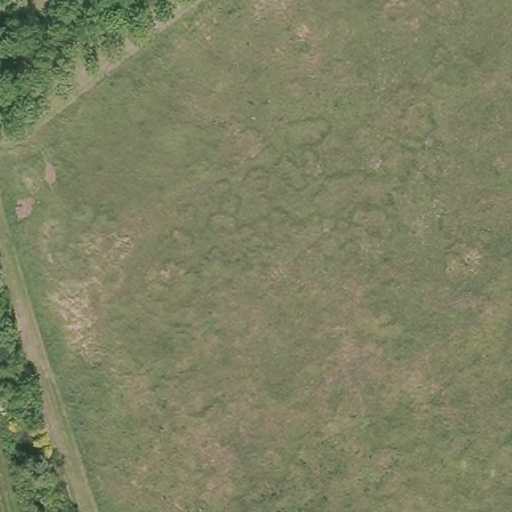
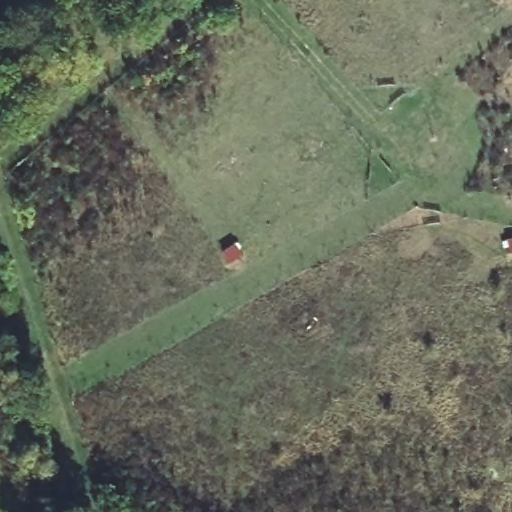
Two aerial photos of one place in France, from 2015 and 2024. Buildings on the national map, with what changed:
[]

